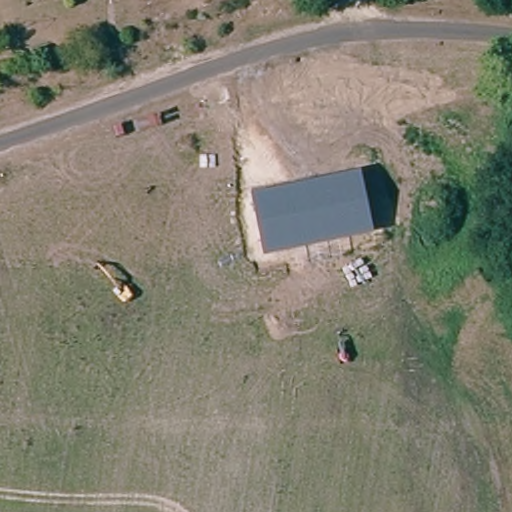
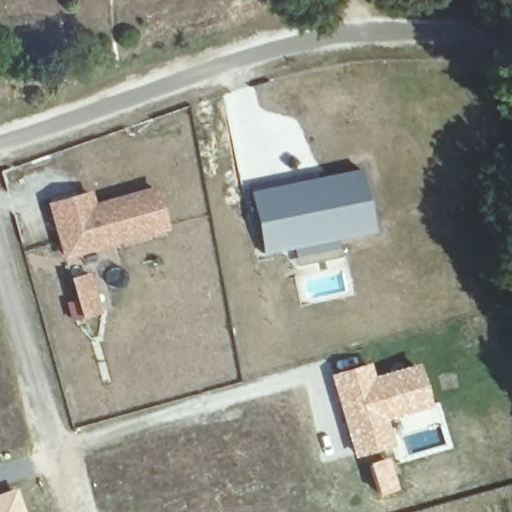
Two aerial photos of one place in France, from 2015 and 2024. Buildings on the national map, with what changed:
unchanged [(249,192),(361,170),(373,233),(263,256),(249,192)]
new [(44,203),(93,190),(95,203),(156,185),(169,230),(62,258),(44,203)]
new [(369,360),(374,374),(419,360),(434,406),(388,420),(394,446),(353,458),(328,374),(369,360)]
new [(389,456),(399,489),(378,496),(367,463),(389,456)]
new [(24,512),(0,512),(0,493),(15,487),(24,512)]

